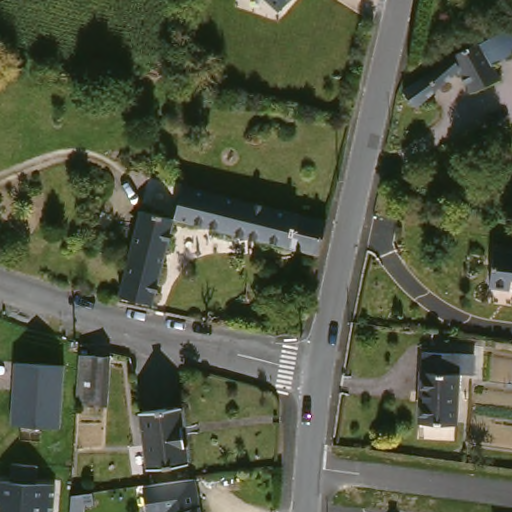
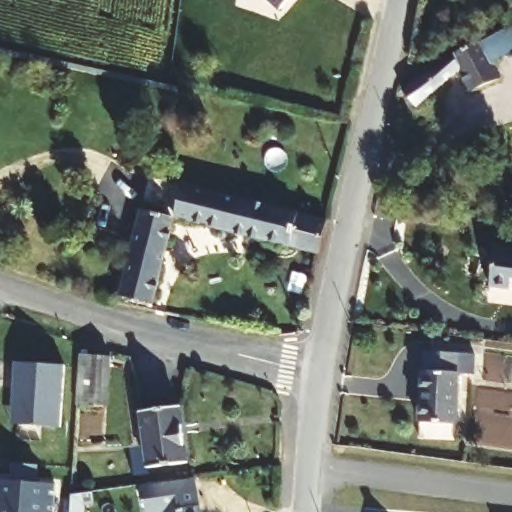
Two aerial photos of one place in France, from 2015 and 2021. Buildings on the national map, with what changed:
unchanged [(512,52),(500,60),(506,71),(474,90),(464,69),(422,102),(408,85),(461,45),(512,17),(512,52)]
unchanged [(331,219),(323,251),(178,215),(186,182),(331,219)]
unchanged [(145,207),(178,215),(154,309),(121,302),(145,207)]
unchanged [(512,280),(490,276),(496,239),(512,241),(512,280)]
unchanged [(423,368),(429,370),(431,345),(480,351),(478,372),(464,371),(458,420),(421,415),(423,368)]
unchanged [(90,349),(121,351),(117,401),(87,400),(90,349)]
unchanged [(64,355),(61,417),(18,415),(20,380),(17,380),(18,370),(14,370),(15,352),(64,355)]
unchanged [(154,463),(146,405),(185,400),(192,458),(154,463)]
unchanged [(49,507),(39,506),(38,512),(0,512),(0,471),(52,475),(49,507)]
unchanged [(173,512),(172,507),(154,509),(150,480),(206,472),(211,512),(173,512)]
unchanged [(93,491),(92,512),(70,512),(71,495),(93,491)]

